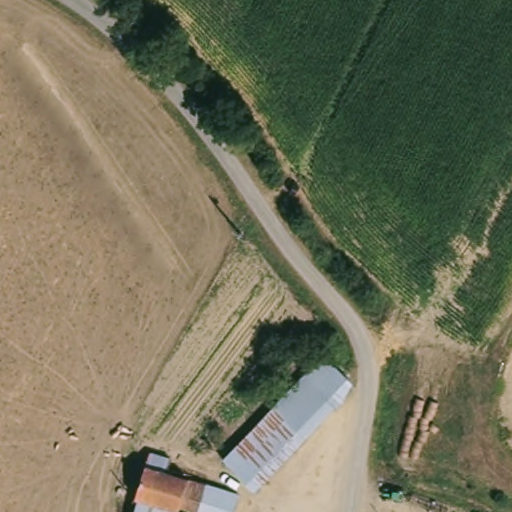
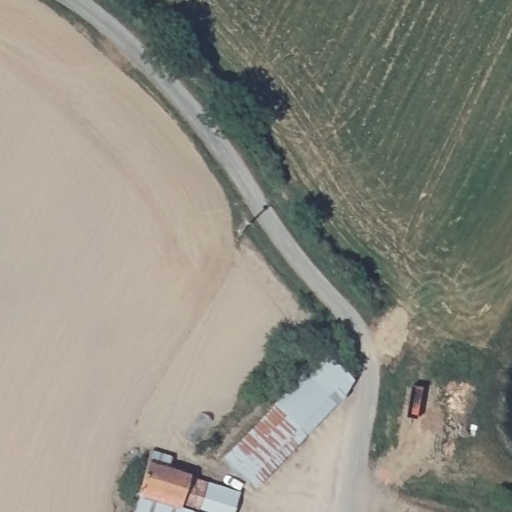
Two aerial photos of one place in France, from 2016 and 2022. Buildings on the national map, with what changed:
unchanged [(254,492),(222,460),(323,353),(354,384),(254,492)]
unchanged [(148,495),(140,493),(155,449),(181,455),(176,470),(218,483),(209,512),(199,512),(197,512),(148,495)]
unchanged [(243,512),(209,512),(218,483),(248,494),(243,512)]
unchanged [(197,512),(142,512),(148,495),(197,512)]

